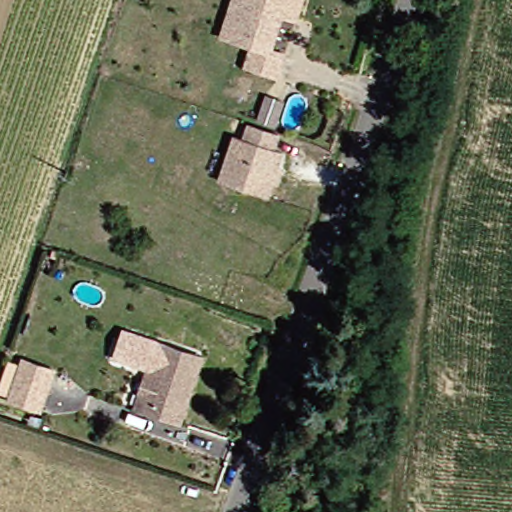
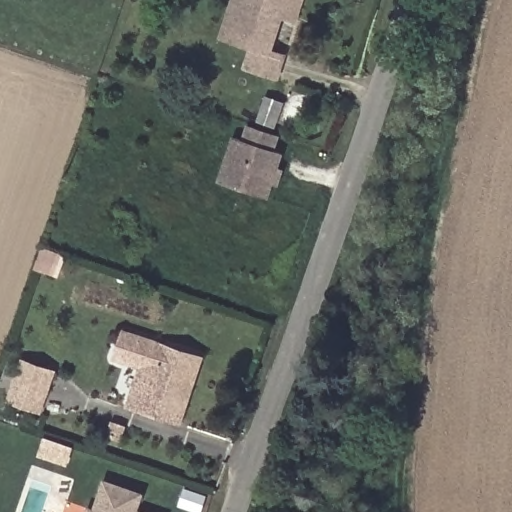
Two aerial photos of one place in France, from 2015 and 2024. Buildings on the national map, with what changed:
unchanged [(218,37),(229,0),(297,0),(290,21),(277,16),(266,52),(279,57),(272,79),(242,70),(249,49),(218,37)]
unchanged [(279,101),(270,134),(279,136),(274,151),(281,153),(275,167),(282,170),(275,187),(270,185),(265,199),(213,180),(228,135),(238,140),(243,125),(250,127),(260,95),(279,101)]
unchanged [(170,420),(163,418),(129,405),(151,343),(185,355),(192,358),(170,420)]
unchanged [(0,388),(10,362),(19,365),(22,358),(55,370),(40,413),(6,402),(9,396),(0,394),(0,388)]
new [(86,509),(92,511),(102,481),(139,493),(134,510),(140,512),(86,512),(86,509)]

